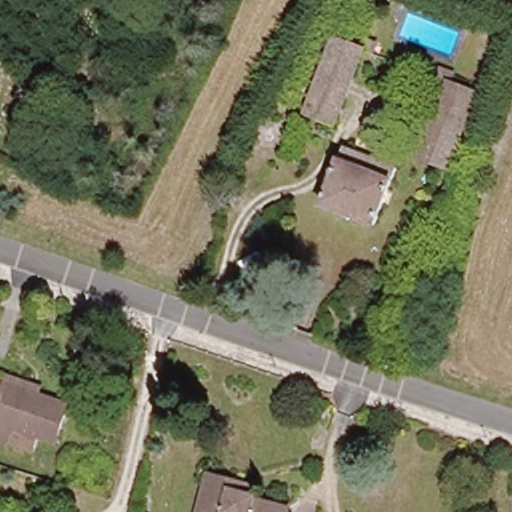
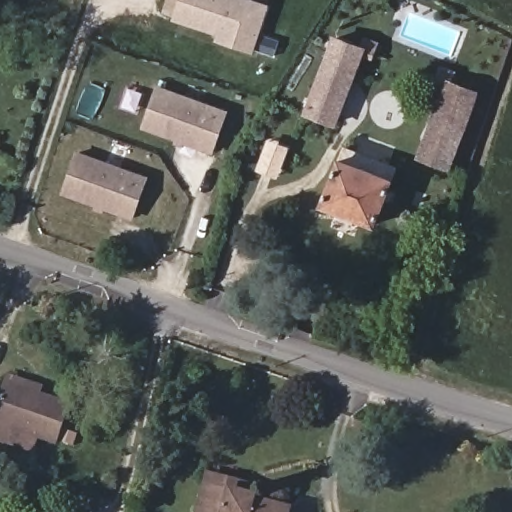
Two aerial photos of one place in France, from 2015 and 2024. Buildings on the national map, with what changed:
new [(217,41),(216,35),(172,21),(179,0),(261,0),(270,3),(254,53),(217,41)]
unchanged [(381,33),(377,44),(368,41),(372,30),(381,33)]
unchanged [(368,41),(334,138),(302,126),(340,32),(368,41)]
unchanged [(452,55),(461,59),(455,75),(445,71),(452,55)]
unchanged [(416,167),(452,80),(455,75),(482,85),(445,178),(416,167)]
new [(229,110),(213,153),(185,144),(184,146),(175,144),(176,141),(142,129),(158,85),(229,110)]
new [(149,176),(132,219),(104,210),(102,213),(95,210),(96,207),(62,194),(77,150),(149,176)]
unchanged [(377,228),(324,210),(336,180),(346,154),(400,173),(377,228)]
unchanged [(0,440),(0,420),(1,421),(9,391),(12,380),(44,388),(42,395),(73,403),(62,443),(45,438),(42,452),(19,445),(0,440)]
unchanged [(205,490),(207,479),(249,490),(246,501),(251,502),(250,505),(274,512),(197,512),(205,490)]

